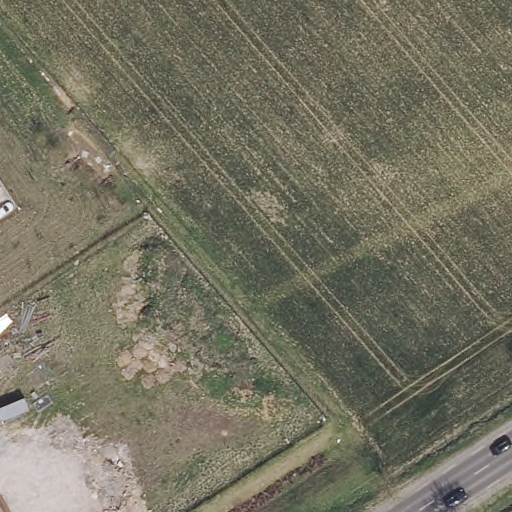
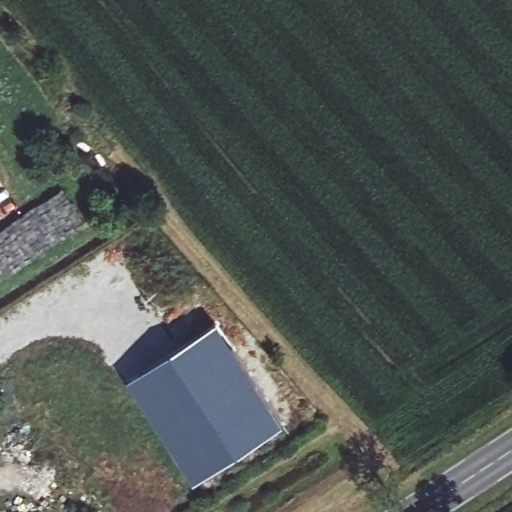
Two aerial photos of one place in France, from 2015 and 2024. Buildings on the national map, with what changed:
new [(129,381),(217,323),(284,424),(195,482),(129,381)]

